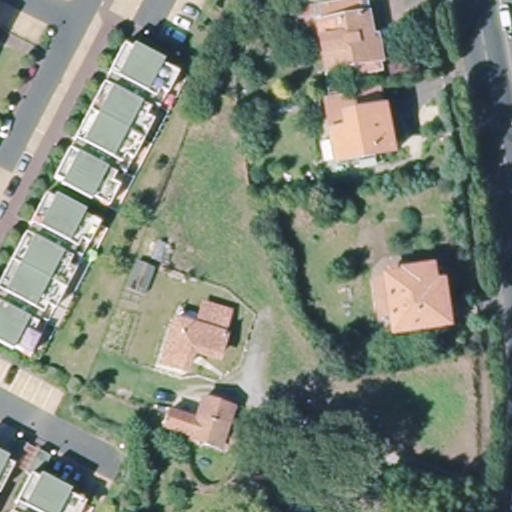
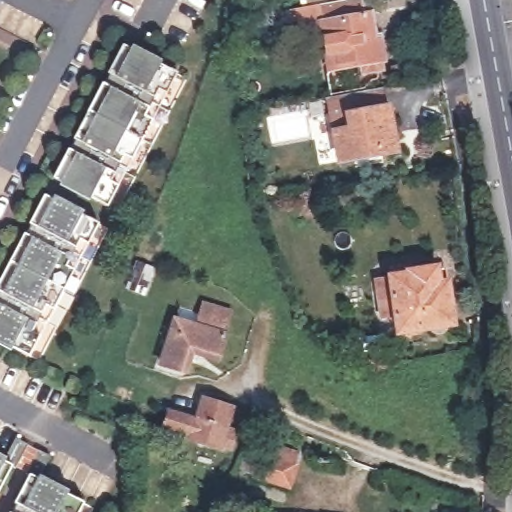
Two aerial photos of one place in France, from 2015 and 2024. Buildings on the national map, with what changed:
unchanged [(302,7),(339,0),(363,0),(366,15),(370,14),(375,38),(379,37),(384,67),(363,71),(361,60),(333,65),(323,12),(297,16),(296,8),(302,7)]
unchanged [(302,7),(300,0),(339,0),(302,7)]
unchanged [(108,208),(54,180),(69,151),(74,141),(103,85),(108,75),(123,47),(177,75),(166,95),(153,122),(132,161),(119,187),(108,208)]
unchanged [(380,112),(384,112),(392,154),(336,164),(325,100),(376,91),(380,112)]
unchanged [(30,226),(45,197),(99,225),(89,246),(75,272),(55,311),(41,338),(30,358),(0,343),(0,285),(25,236),(30,226)]
unchanged [(442,320),(440,323),(436,325),(432,326),(429,325),(426,322),(424,318),(395,322),(392,306),(378,308),(375,294),(390,291),(388,273),(406,270),(406,268),(430,264),(433,277),(441,276),(446,316),(442,316),(442,320)]
unchanged [(205,303),(230,311),(217,351),(187,342),(178,367),(158,361),(174,315),(197,323),(205,303)]
unchanged [(217,451),(186,441),(187,438),(145,425),(154,401),(196,415),(204,392),(232,402),(223,432),(232,434),(230,444),(219,441),(217,451)]
unchanged [(269,455),(273,446),(301,458),(298,466),(288,487),(254,474),(263,452),(269,455)]
unchanged [(0,486),(0,462),(10,467),(0,486)]
unchanged [(27,476),(81,504),(77,512),(9,512),(12,505),(27,476)]

